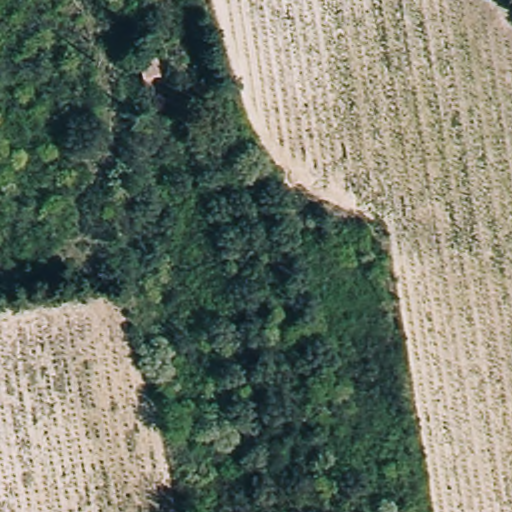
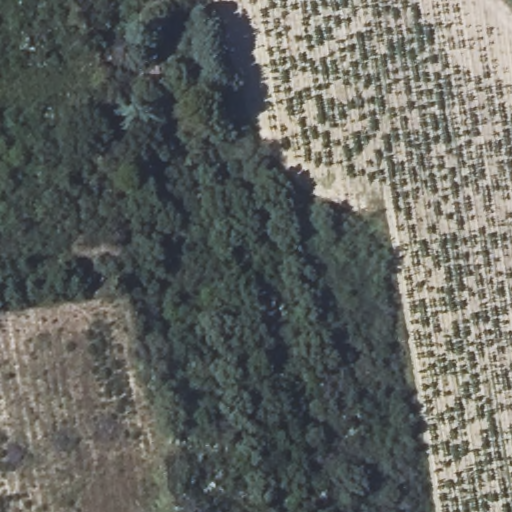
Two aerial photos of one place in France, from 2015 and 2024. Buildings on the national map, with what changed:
unchanged [(137,53),(154,49),(160,76),(143,80),(137,53)]

